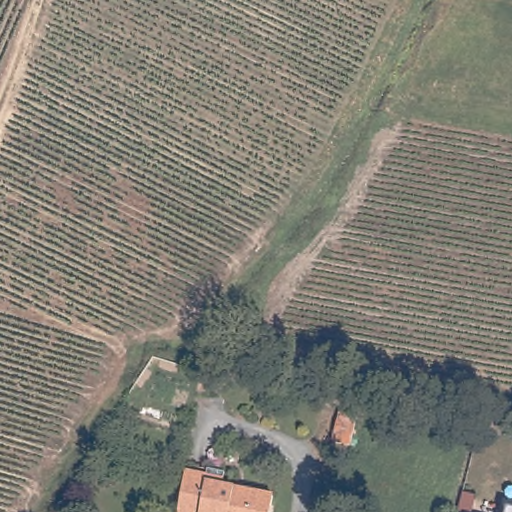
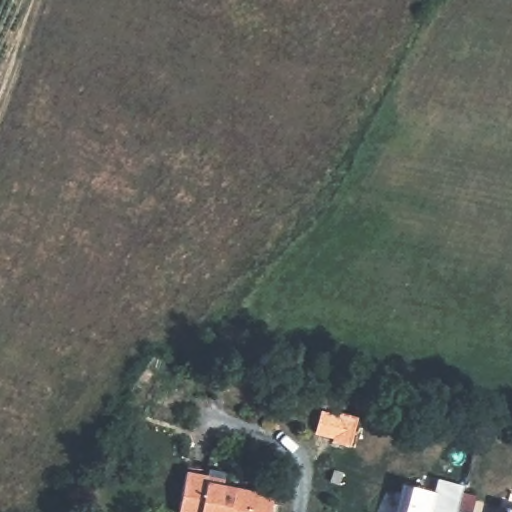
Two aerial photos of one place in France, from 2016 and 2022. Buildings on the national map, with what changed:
unchanged [(276,512),(180,512),(187,469),(211,473),(210,480),(280,493),(276,512)]
new [(470,512),(464,512),(458,511),(458,512),(395,512),(403,482),(410,484),(435,490),(438,477),(464,484),(463,491),(475,494),(470,512)]
new [(506,507),(512,508),(512,512),(505,512),(506,507)]

